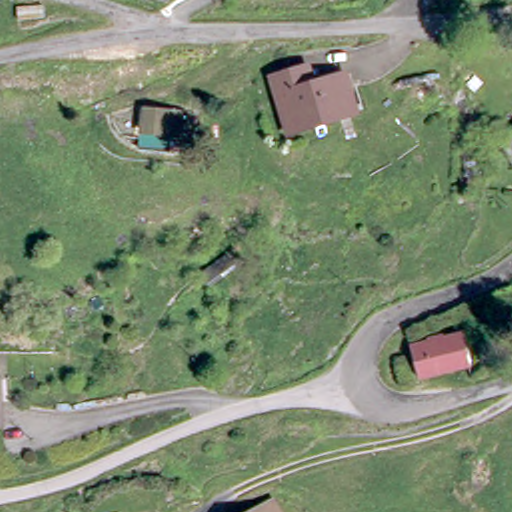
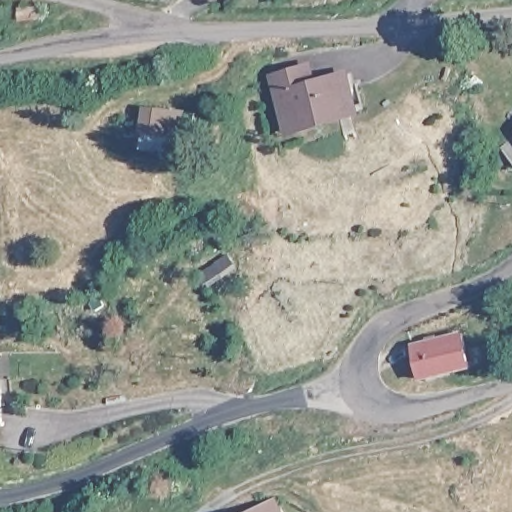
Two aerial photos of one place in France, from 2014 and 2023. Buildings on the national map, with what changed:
unchanged [(278,116),(265,76),(294,67),(304,63),(311,82),(339,71),(354,112),(301,127),(283,132),(278,116)]
unchanged [(182,134),(144,125),(152,101),(189,109),(182,134)]
unchanged [(512,145),(512,150),(509,147),(512,145)]
unchanged [(465,367),(416,379),(407,348),(457,336),(465,367)]
unchanged [(247,512),(266,501),(272,512),(247,512)]

